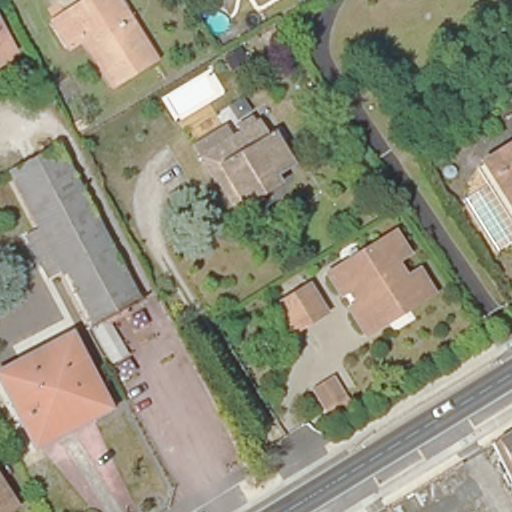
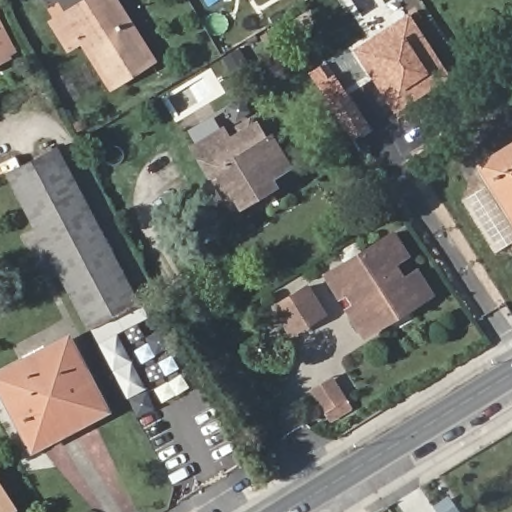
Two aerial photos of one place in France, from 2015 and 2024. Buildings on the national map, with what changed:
unchanged [(152,56),(111,82),(82,36),(68,44),(52,19),(81,0),(117,0),(152,56)]
new [(410,12),(451,76),(396,114),(353,49),(410,12)]
unchanged [(0,60),(0,47),(6,58),(0,60)]
new [(370,131),(353,140),(308,74),(319,67),(327,81),(333,77),(370,131)]
unchanged [(234,202),(212,167),(209,169),(200,154),(255,119),(263,133),(267,131),(285,159),(267,170),(272,178),(234,202)]
unchanged [(512,143),(512,209),(482,162),(512,143)]
unchanged [(50,147),(134,302),(85,327),(2,172),(50,147)]
unchanged [(394,226),(407,247),(386,259),(397,277),(417,265),(431,287),(394,309),(388,300),(380,305),(386,315),(366,327),(350,302),(368,290),(360,275),(341,287),(328,266),(394,226)]
unchanged [(307,289),(323,316),(293,334),(277,308),(307,289)]
unchanged [(34,443),(0,374),(0,373),(44,351),(65,340),(71,351),(101,409),(34,443)]
unchanged [(330,376),(342,393),(322,406),(311,389),(330,376)]
demolished [(512,423),(512,476),(492,435),(512,423)]
unchanged [(10,505),(0,511),(0,489),(10,505)]

